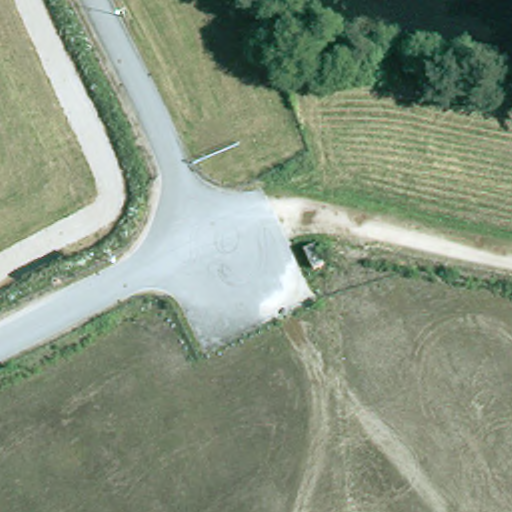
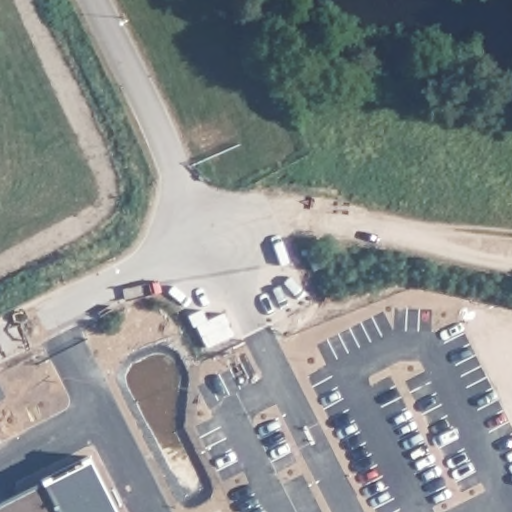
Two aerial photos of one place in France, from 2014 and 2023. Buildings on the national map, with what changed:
unchanged [(238,174),(240,176),(248,194),(237,199),(230,182),(228,179),(238,174)]
new [(85,460),(111,512),(0,512),(0,502),(85,460)]

